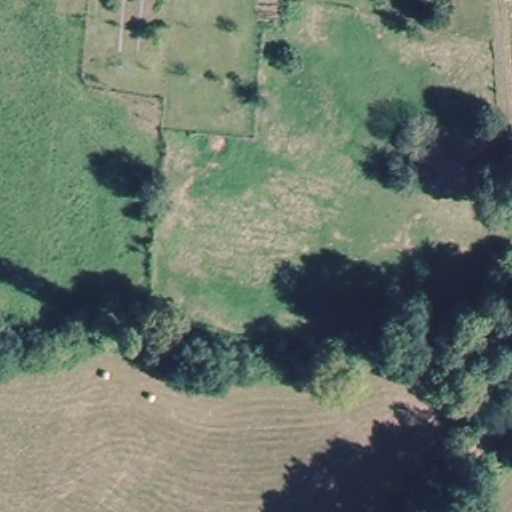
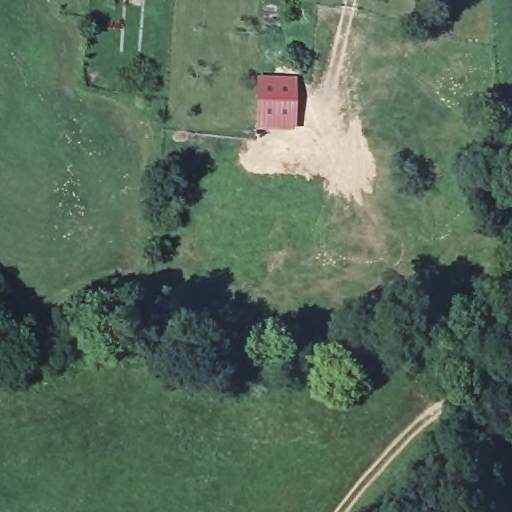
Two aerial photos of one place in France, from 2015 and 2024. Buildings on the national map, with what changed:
new [(256,75),(297,77),(295,131),(255,129),(256,75)]

